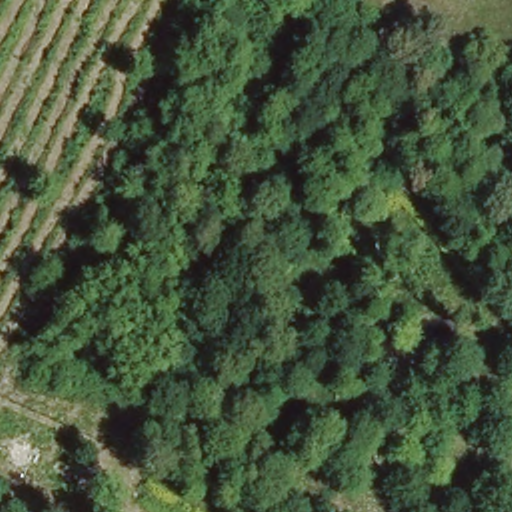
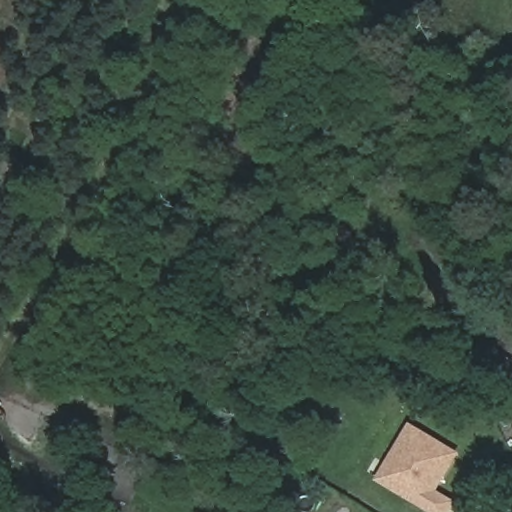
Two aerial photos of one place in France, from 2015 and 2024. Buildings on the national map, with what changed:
new [(410,422),(462,453),(439,491),(453,500),(446,512),(427,512),(375,481),(410,422)]

